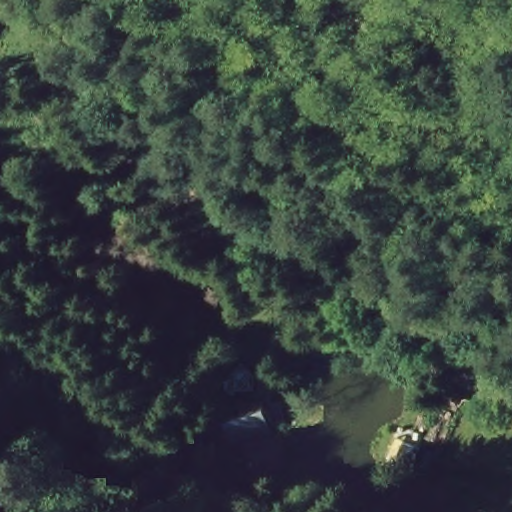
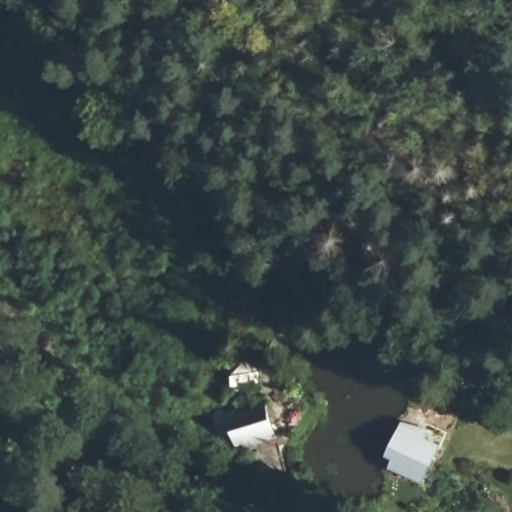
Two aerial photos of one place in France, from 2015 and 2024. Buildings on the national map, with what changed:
unchanged [(287,439),(232,454),(220,418),(272,403),(287,439)]
new [(427,437),(442,444),(425,484),(384,466),(403,422),(430,429),(427,437)]

